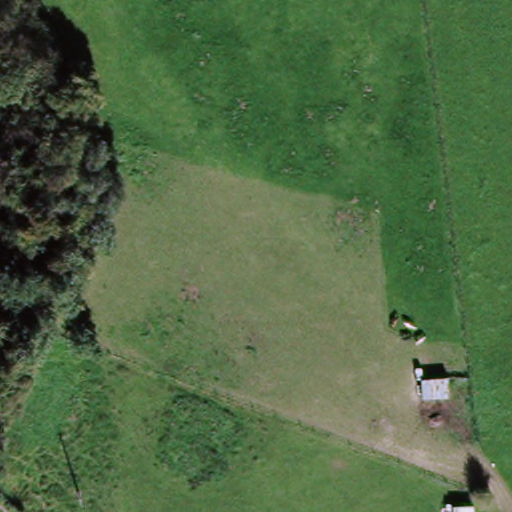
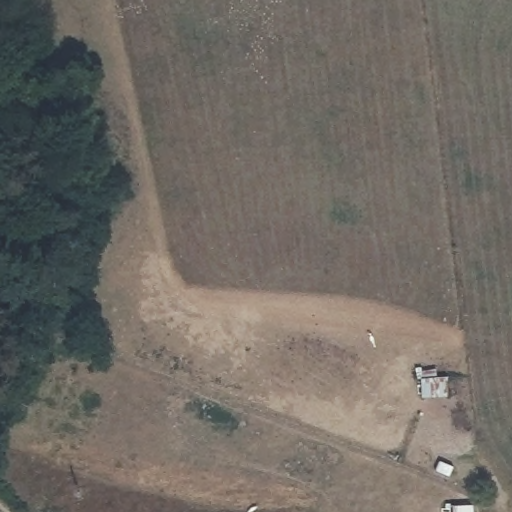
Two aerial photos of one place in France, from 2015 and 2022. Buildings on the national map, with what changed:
unchanged [(418,377),(448,375),(449,400),(421,399),(418,377)]
unchanged [(476,505),(476,512),(449,512),(449,505),(476,505)]

